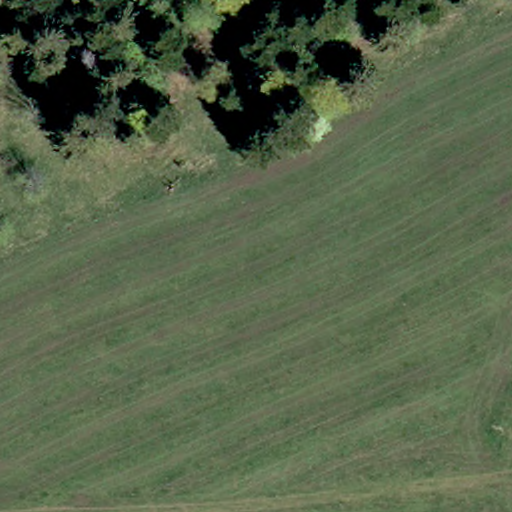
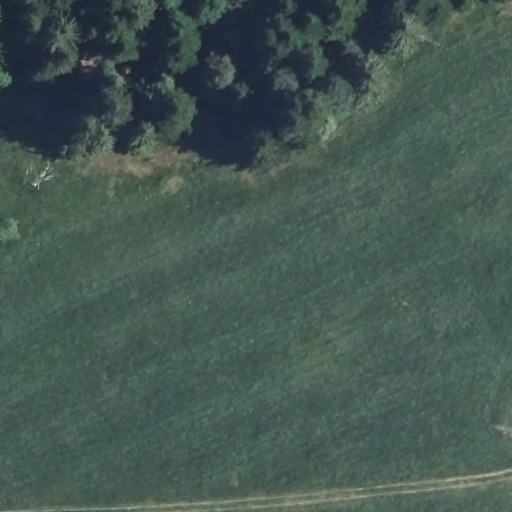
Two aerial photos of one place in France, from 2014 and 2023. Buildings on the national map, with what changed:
[]

